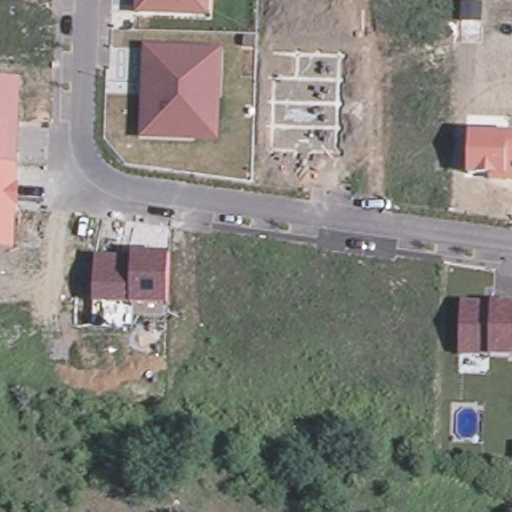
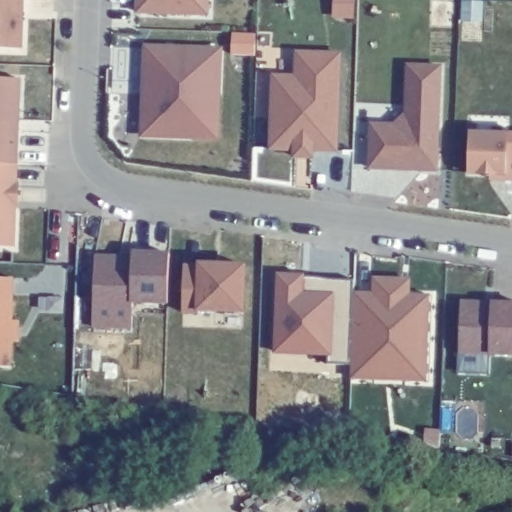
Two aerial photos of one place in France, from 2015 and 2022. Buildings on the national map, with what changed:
new [(0,49),(0,0),(24,0),(21,50),(0,49)]
unchanged [(210,0),(209,16),(137,13),(137,0),(210,0)]
unchanged [(223,48),(219,144),(138,140),(144,47),(223,48)]
new [(272,75),(294,77),(295,52),(342,54),(339,152),(313,151),(313,159),(292,158),(293,152),(269,150),(272,75)]
new [(361,176),(362,132),(384,132),(397,121),(398,73),(431,74),(427,178),(410,177),(384,177),(361,176)]
unchanged [(18,166),(16,247),(0,247),(0,77),(21,77),(18,166)]
unchanged [(471,132),(512,133),(512,181),(493,181),(493,176),(469,175),(471,132)]
unchanged [(131,256),(131,251),(170,252),(167,306),(94,303),(96,254),(131,256)]
new [(183,266),(198,267),(198,262),(248,265),(245,313),(198,311),(198,315),(181,314),(183,266)]
new [(278,273),(304,275),(353,277),(352,293),(374,293),(374,278),(412,280),(411,295),(431,297),(429,382),(353,380),(353,366),(328,365),(328,356),(274,353),(278,273)]
new [(3,330),(8,334),(9,338),(9,342),(7,348),(3,352),(1,377),(0,376),(0,288),(4,288),(3,330)]
unchanged [(459,353),(463,301),(492,302),(512,303),(512,355),(491,354),(459,353)]

